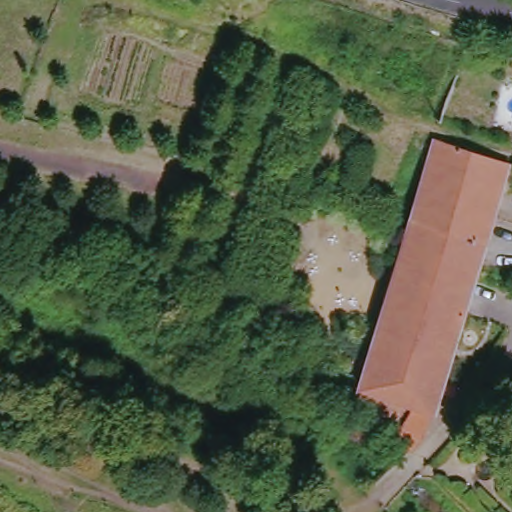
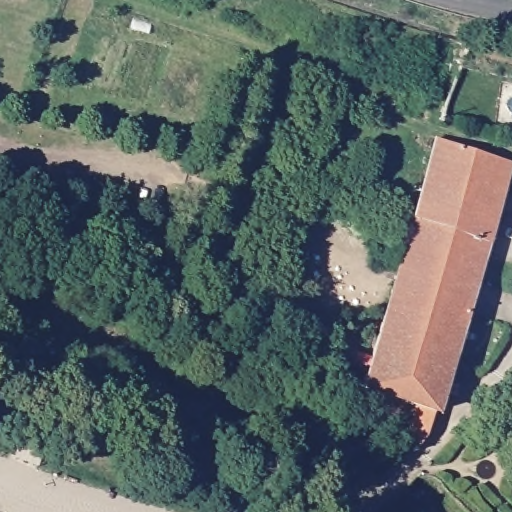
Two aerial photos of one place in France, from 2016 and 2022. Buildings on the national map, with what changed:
unchanged [(504,165),(421,433),(410,449),(393,438),(409,408),(345,384),(352,360),(367,364),(430,140),(504,165)]

